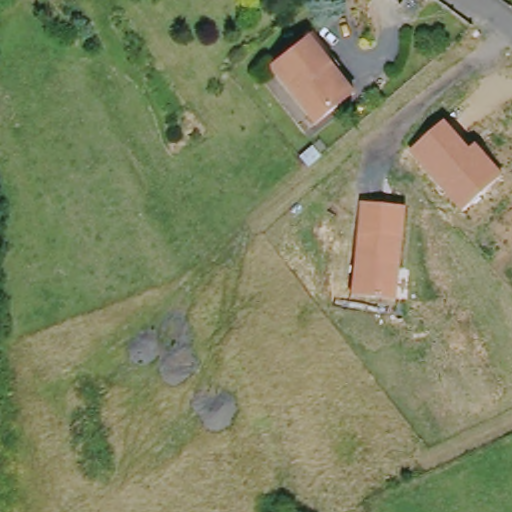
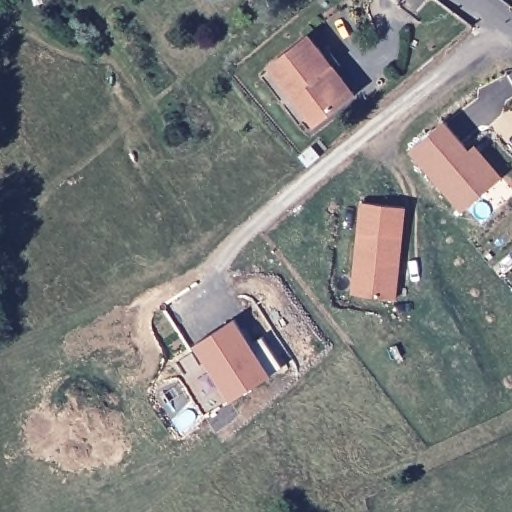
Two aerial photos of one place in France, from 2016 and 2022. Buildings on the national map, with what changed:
unchanged [(265,65),(304,35),(325,61),(349,89),(342,95),(311,121),(265,65)]
unchanged [(472,148),(477,143),(503,175),(463,211),(410,151),(446,120),(472,148)]
unchanged [(407,207),(395,299),(350,293),(360,202),(407,207)]
new [(272,374),(230,403),(192,346),(235,319),(272,374)]

